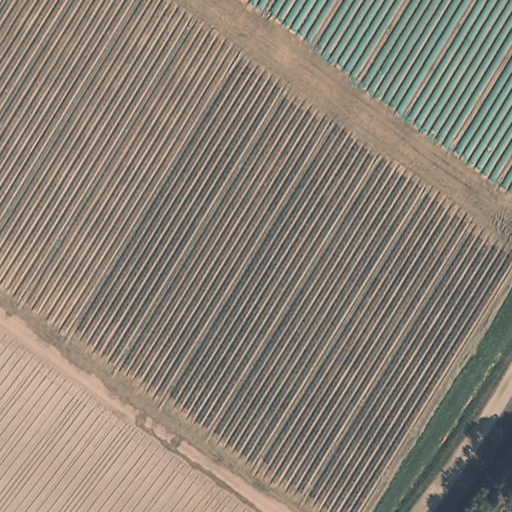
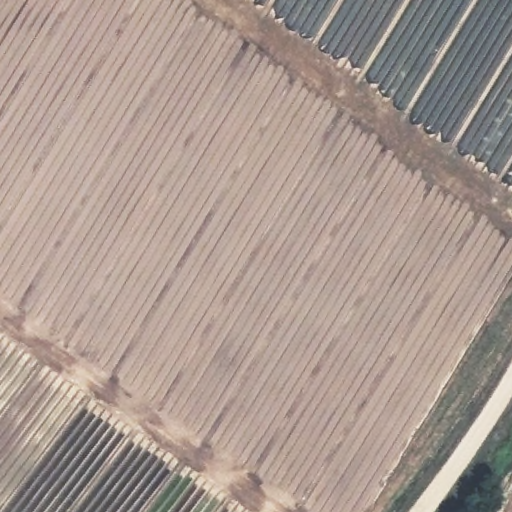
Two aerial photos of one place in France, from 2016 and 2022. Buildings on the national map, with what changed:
[]

